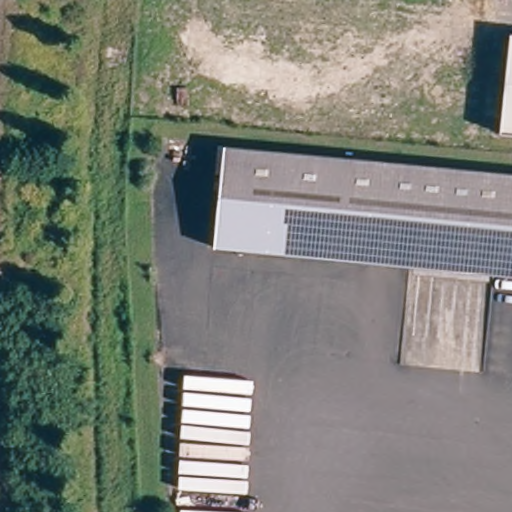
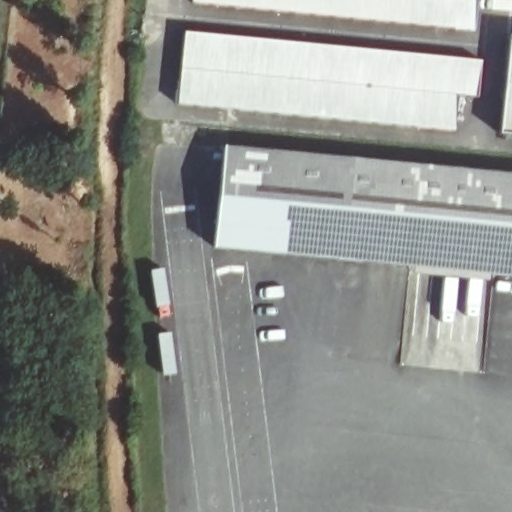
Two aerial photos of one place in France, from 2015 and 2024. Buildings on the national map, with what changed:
new [(478,0),(475,31),(192,4),(192,0),(478,0)]
new [(184,35),(481,64),(477,100),(458,99),(455,132),(177,105),(184,35)]
unchanged [(512,136),(501,134),(511,35),(512,36),(512,136)]
unchanged [(206,237),(214,151),(512,180),(512,282),(204,252),(206,237)]

